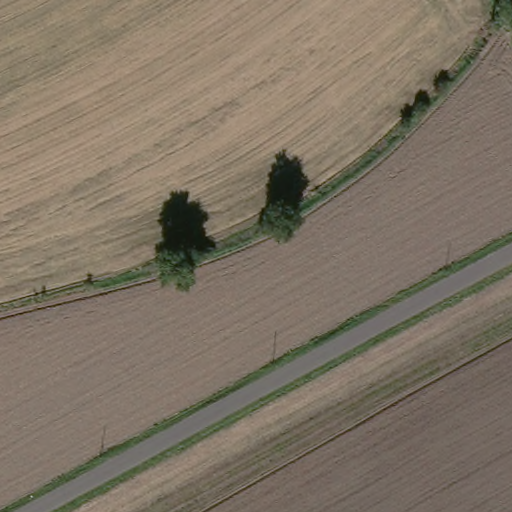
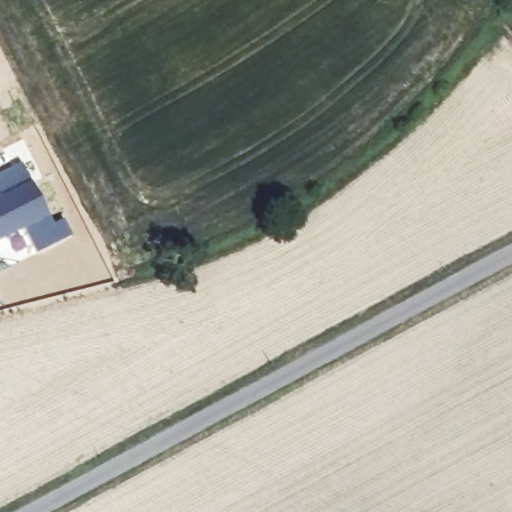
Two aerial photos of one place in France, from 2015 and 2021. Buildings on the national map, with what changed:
new [(0,193),(0,172),(21,161),(54,222),(63,217),(71,234),(36,252),(23,225),(0,237),(0,197),(2,196),(0,193)]

